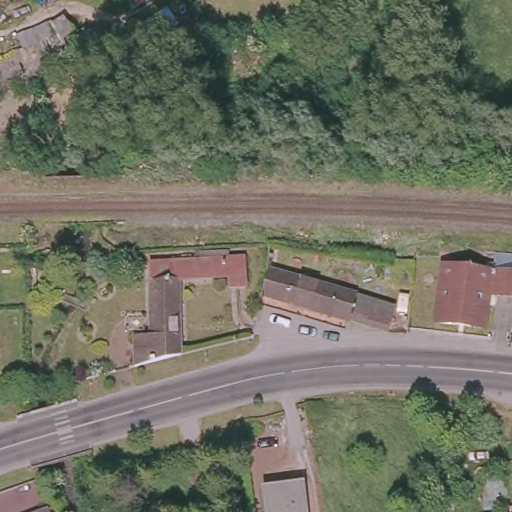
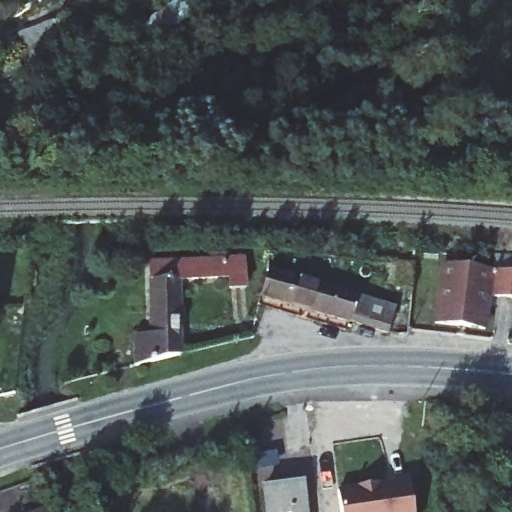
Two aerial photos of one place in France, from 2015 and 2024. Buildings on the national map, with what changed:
unchanged [(2,0),(0,1),(0,0),(2,0)]
unchanged [(132,337),(149,336),(148,263),(240,256),(244,285),(228,287),(226,276),(177,280),(177,355),(133,366),(132,337)]
unchanged [(430,331),(437,264),(469,267),(511,270),(512,271),(512,297),(511,296),(488,293),(480,338),(430,331)]
unchanged [(393,309),(385,332),(258,294),(265,270),(393,309)]
new [(409,480),(414,512),(341,512),(338,490),(409,480)]
unchanged [(261,491),(299,485),(303,512),(264,512),(261,491)]

